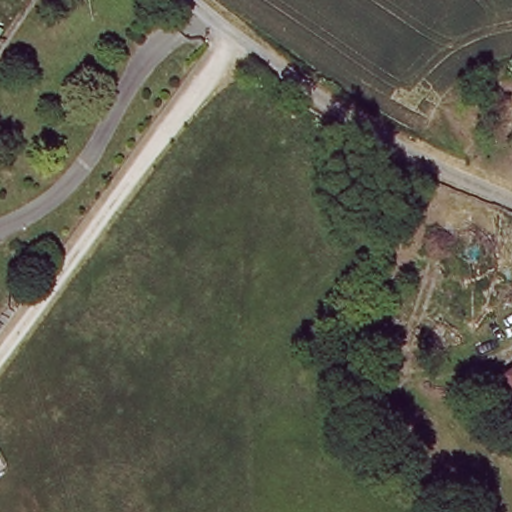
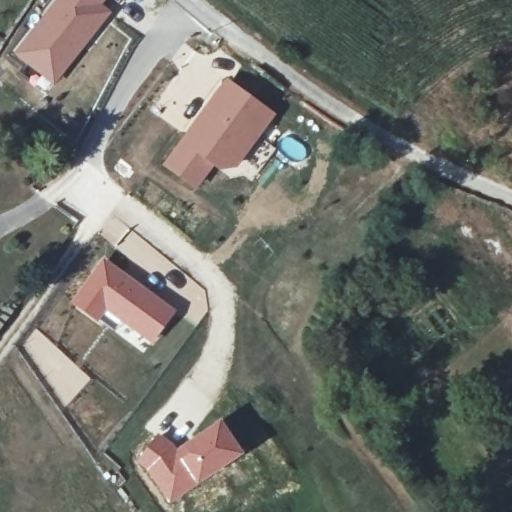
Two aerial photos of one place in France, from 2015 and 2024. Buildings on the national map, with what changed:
new [(51,0),(106,0),(103,4),(113,12),(53,86),(11,52),(51,0)]
new [(226,76),(277,114),(237,169),(223,173),(215,167),(196,191),(161,164),(226,76)]
new [(101,255),(177,310),(152,345),(105,312),(98,323),(68,302),(101,255)]
new [(504,377),(512,371),(512,388),(504,377)]
new [(157,432),(177,447),(220,418),(244,453),(171,505),(135,459),(157,432)]

